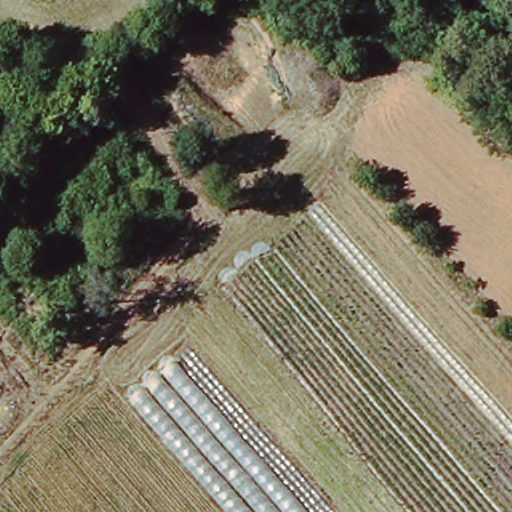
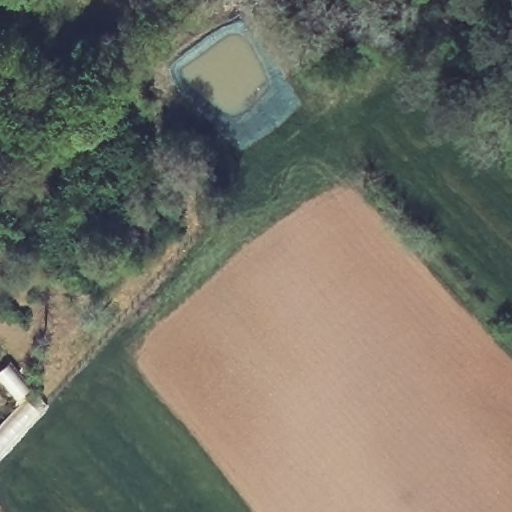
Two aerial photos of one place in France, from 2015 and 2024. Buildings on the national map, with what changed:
demolished [(171,359),(309,512),(225,512),(124,401),(171,359)]

